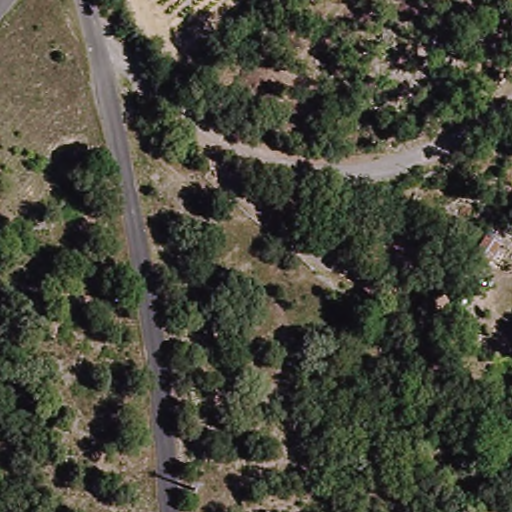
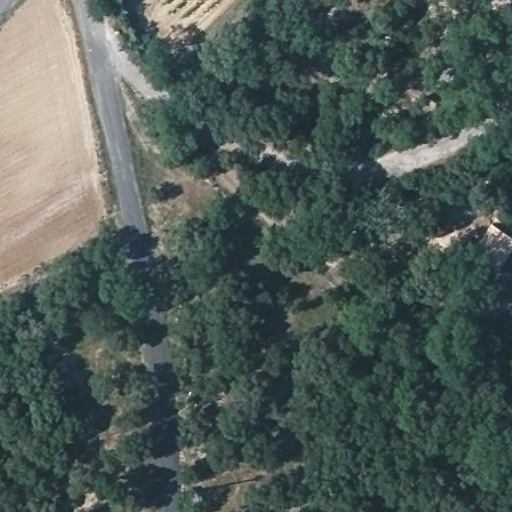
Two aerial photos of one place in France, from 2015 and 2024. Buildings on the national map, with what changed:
[]

